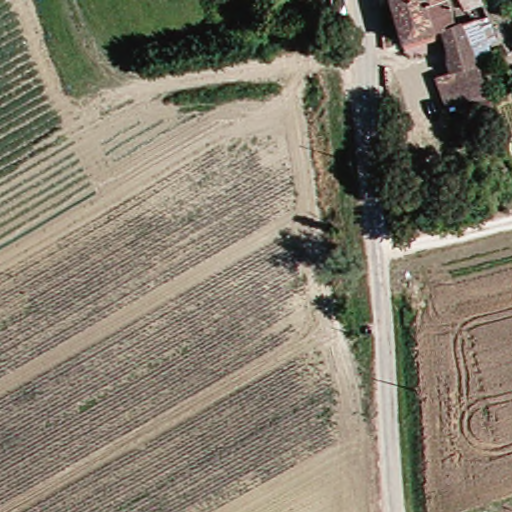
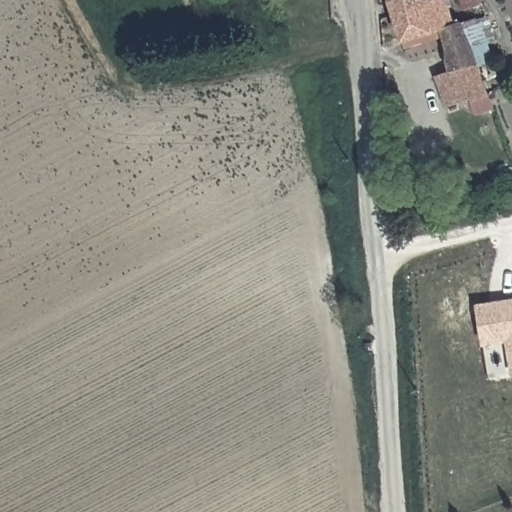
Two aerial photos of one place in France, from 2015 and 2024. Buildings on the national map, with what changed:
unchanged [(473,99),(452,106),(441,76),(454,72),(450,56),(449,50),(445,30),(406,41),(395,2),(402,0),(427,0),(452,0),(458,23),(464,20),(465,22),(493,16),(500,40),(490,44),(497,62),(483,67),(487,79),(492,92),(497,105),(478,112),(473,99)]
unchanged [(473,0),(487,0),(475,5),(473,0)]
new [(484,347),(478,309),(503,305),(512,304),(512,370),(507,343),(484,347)]

